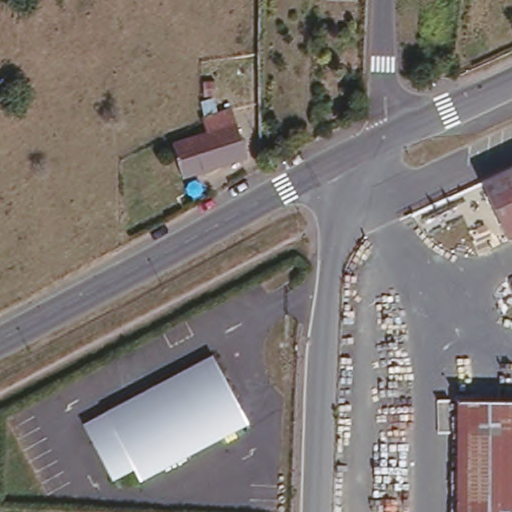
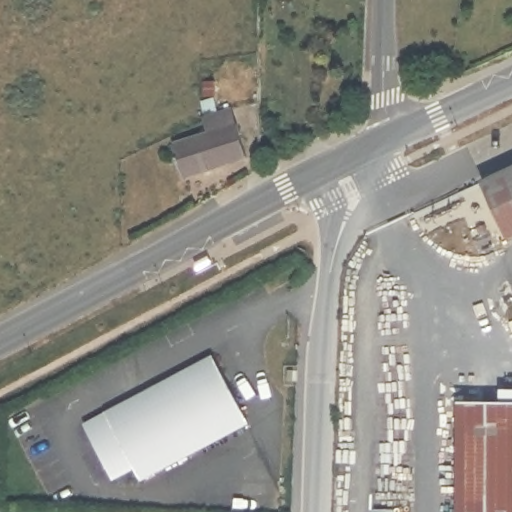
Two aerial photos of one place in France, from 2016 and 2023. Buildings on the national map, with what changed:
unchanged [(436,65),(451,68),(450,79),(435,76),(436,65)]
unchanged [(203,114),(206,112),(202,99),(213,96),(218,109),(231,104),(237,120),(239,126),(248,154),(183,174),(173,140),(208,130),(203,114)]
unchanged [(512,234),(509,236),(482,178),(512,164),(512,234)]
unchanged [(248,423),(140,480),(133,469),(112,481),(83,425),(212,356),(248,423)]
unchanged [(512,512),(458,512),(459,404),(512,405),(512,512)]

